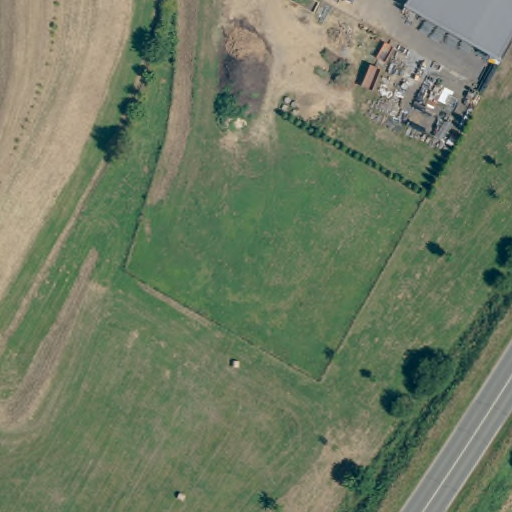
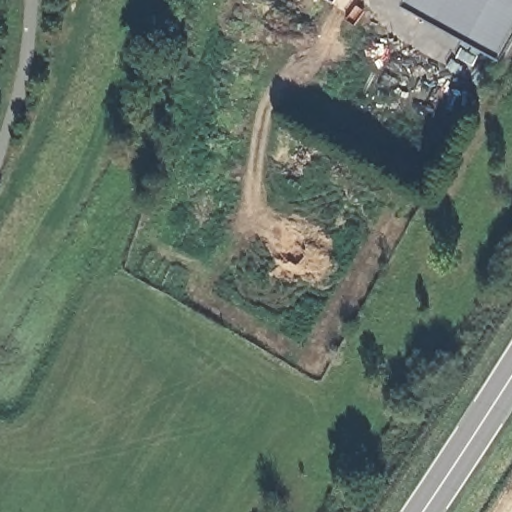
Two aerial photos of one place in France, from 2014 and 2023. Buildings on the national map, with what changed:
unchanged [(403,10),(409,0),(512,0),(512,43),(500,65),(403,10)]

